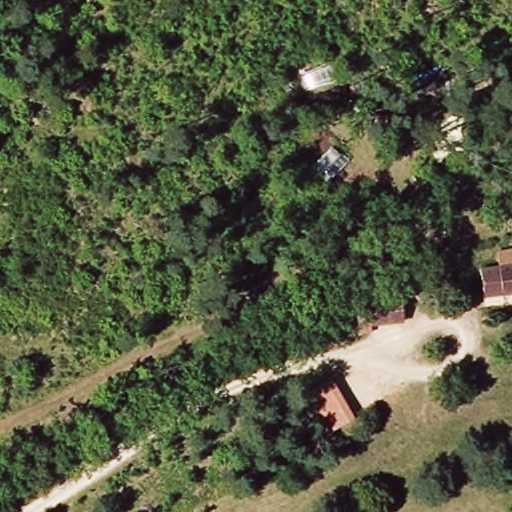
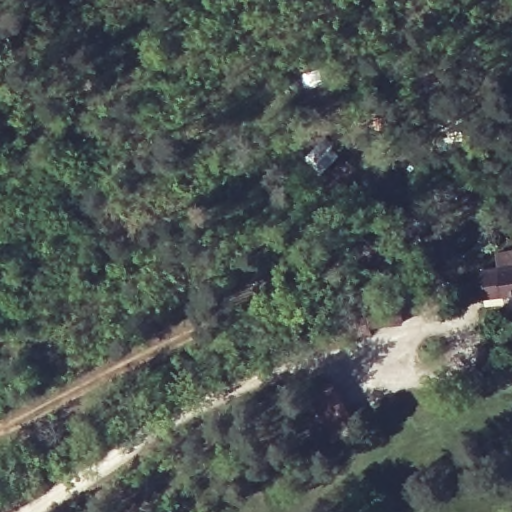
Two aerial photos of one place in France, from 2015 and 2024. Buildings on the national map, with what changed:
unchanged [(475,277),(491,274),(495,274),(493,260),(512,256),(512,300),(480,304),(475,277)]
unchanged [(375,323),(373,300),(407,298),(408,321),(375,323)]

